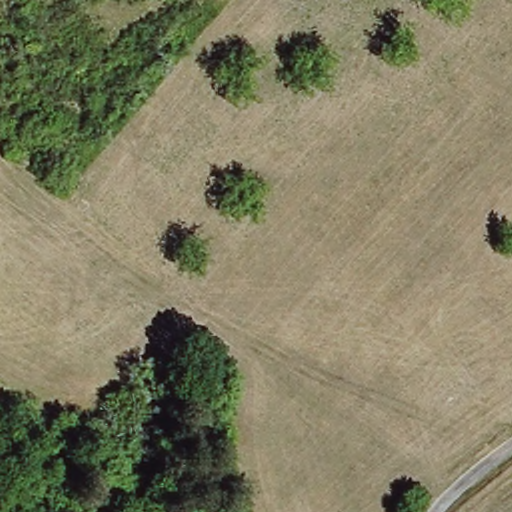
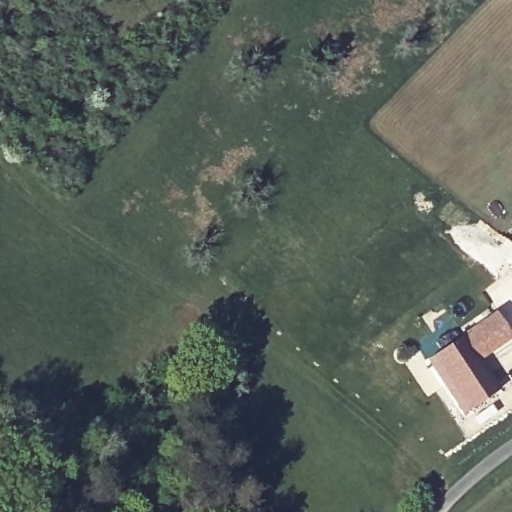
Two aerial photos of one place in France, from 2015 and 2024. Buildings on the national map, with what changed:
new [(494,314),(510,338),(476,361),(497,392),(460,416),(423,361),(494,314)]

